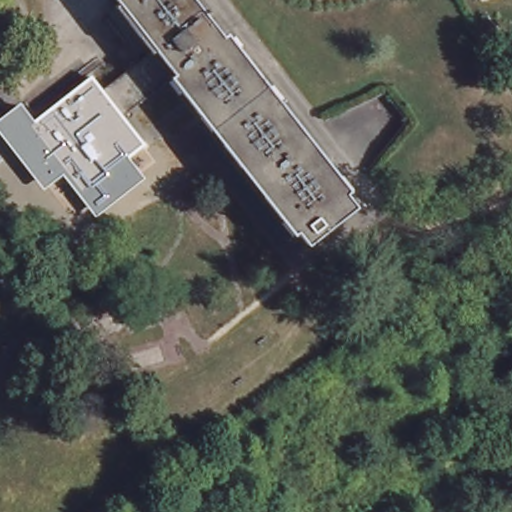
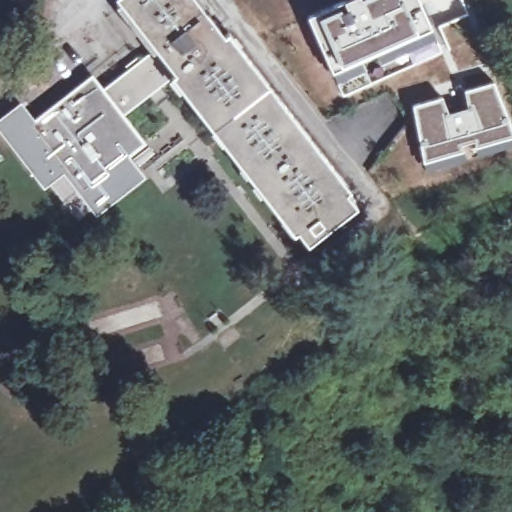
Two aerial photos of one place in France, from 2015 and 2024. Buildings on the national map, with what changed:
unchanged [(229,36),(233,33),(355,190),(351,193),(360,206),(312,243),(302,231),(299,234),(187,92),(192,88),(180,74),(161,50),(122,0),(200,0),(229,36)]
new [(435,37),(335,79),(308,16),(346,0),(418,0),(435,37)]
unchanged [(97,79),(105,91),(132,71),(129,65),(142,56),(146,61),(161,50),(180,74),(125,116),(147,143),(86,190),(42,132),(36,125),(97,79)]
new [(447,113),(467,108),(464,92),(492,82),(512,132),(512,144),(425,168),(414,107),(440,98),(447,113)]

